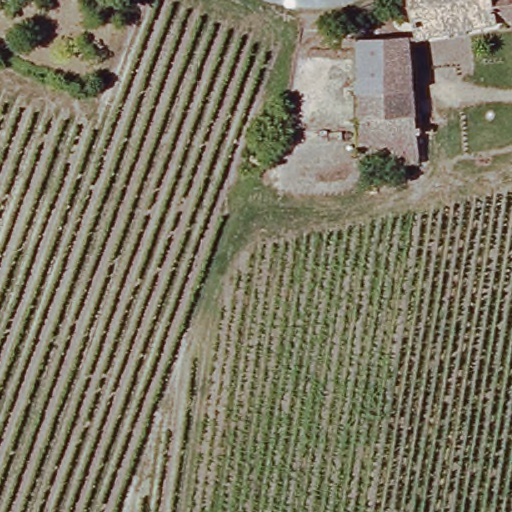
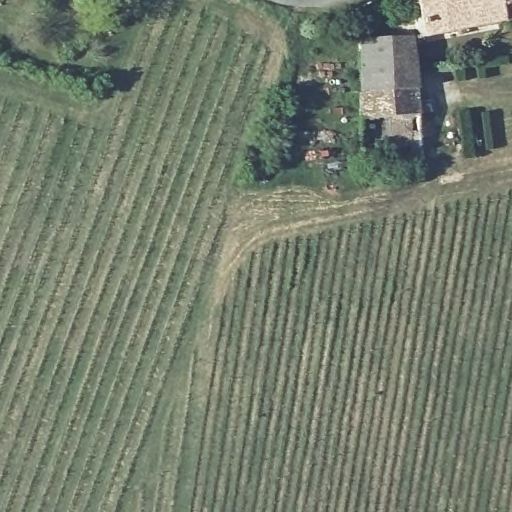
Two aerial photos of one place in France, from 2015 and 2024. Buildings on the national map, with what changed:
unchanged [(412,0),(459,0),(414,10),(412,0)]
unchanged [(419,41),(414,10),(459,0),(512,0),(512,24),(419,41)]
unchanged [(396,168),(395,153),(360,156),(350,46),(412,41),(422,165),(396,168)]

